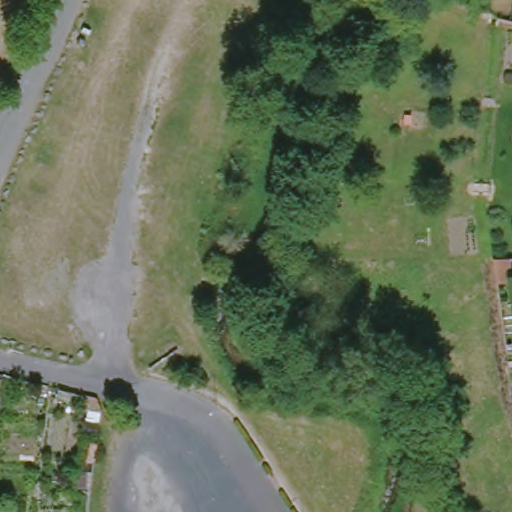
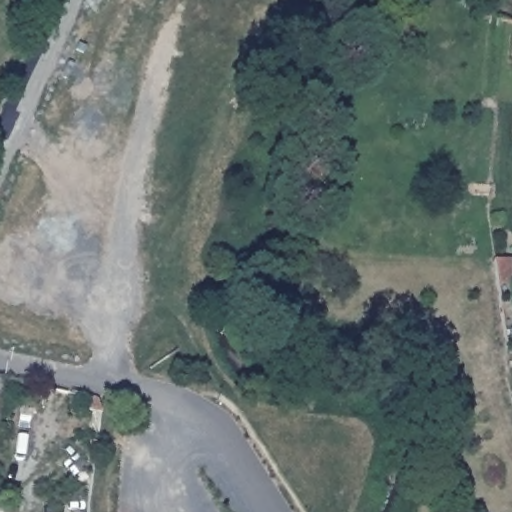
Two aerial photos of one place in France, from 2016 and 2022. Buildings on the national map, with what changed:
unchanged [(96,396),(99,411),(83,408),(84,393),(96,396)]
unchanged [(94,463),(87,462),(89,442),(96,443),(94,463)]

